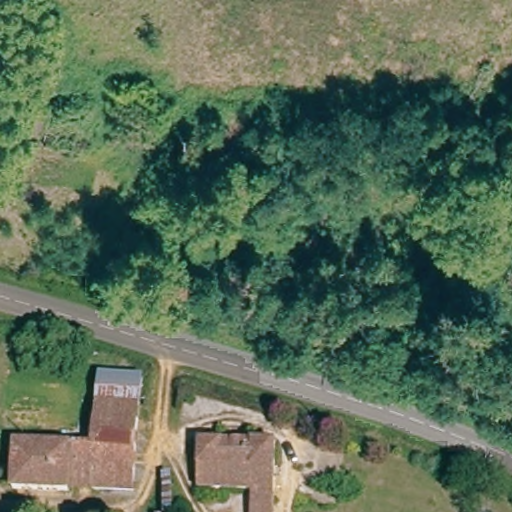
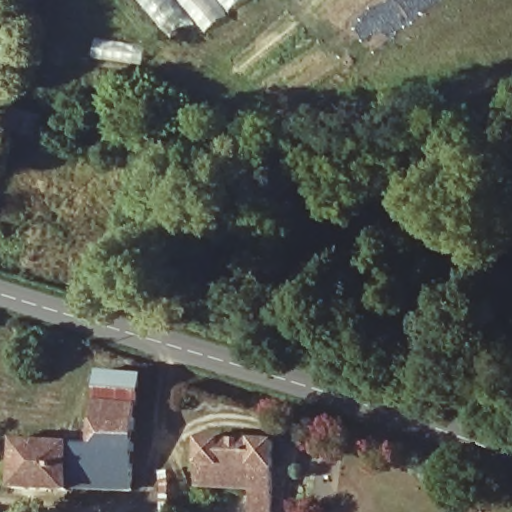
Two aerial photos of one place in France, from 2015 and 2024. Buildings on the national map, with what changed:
new [(206,32),(191,14),(170,35),(140,0),(243,0),(206,32)]
unchanged [(96,449),(104,373),(146,376),(138,486),(75,481),(74,487),(17,484),(20,440),(76,447),(96,449)]
unchanged [(247,512),(247,494),(194,487),(196,440),(274,447),(272,512),(247,512)]

